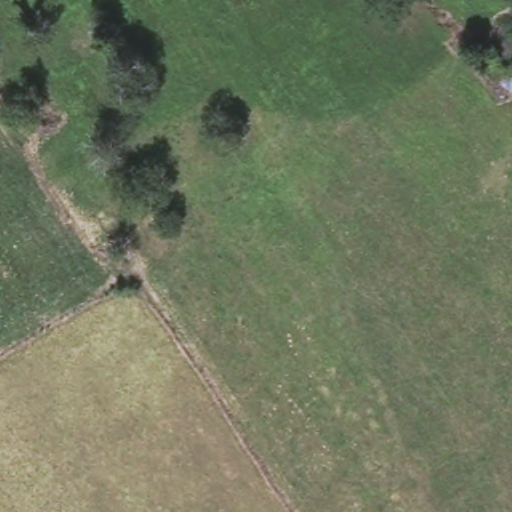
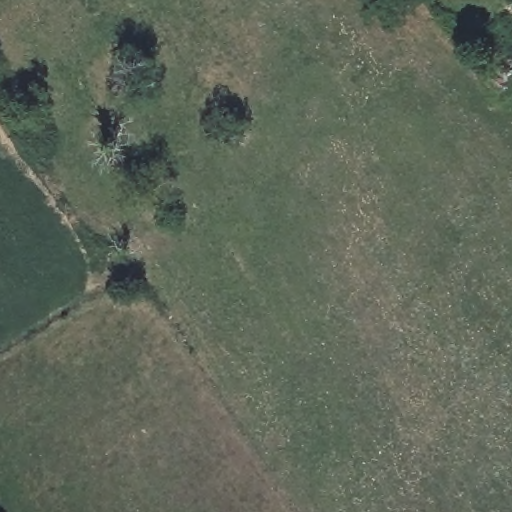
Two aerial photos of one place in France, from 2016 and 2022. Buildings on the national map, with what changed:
unchanged [(479,54),(512,38),(512,70),(494,80),(479,54)]

